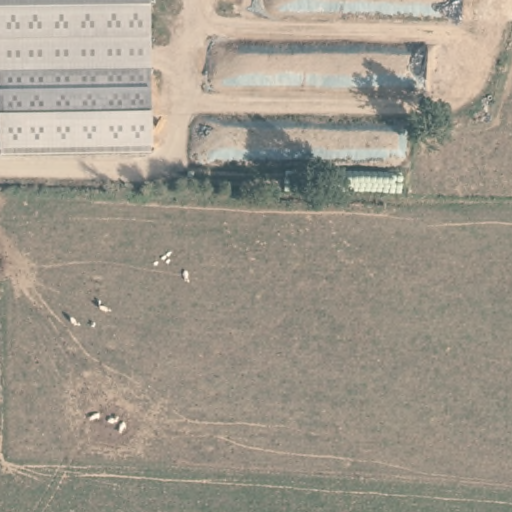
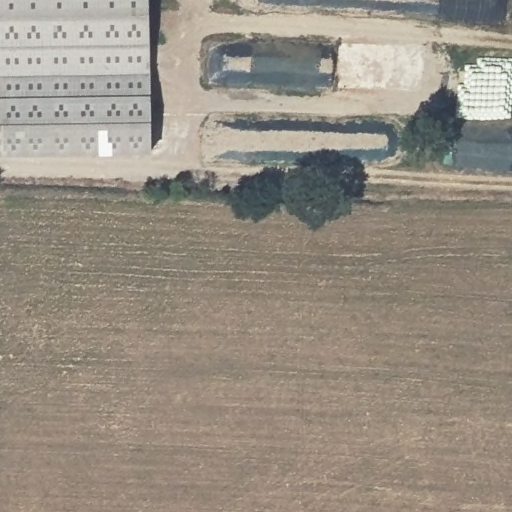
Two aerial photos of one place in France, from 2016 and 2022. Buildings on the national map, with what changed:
unchanged [(147,76),(0,76),(0,0),(147,0),(147,76)]
unchanged [(147,76),(151,161),(0,157),(0,76),(147,76)]

